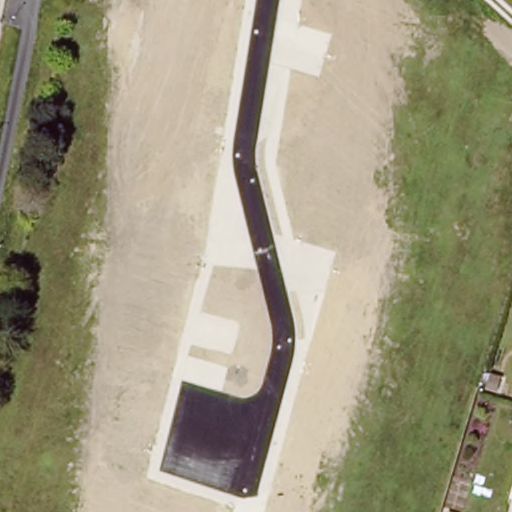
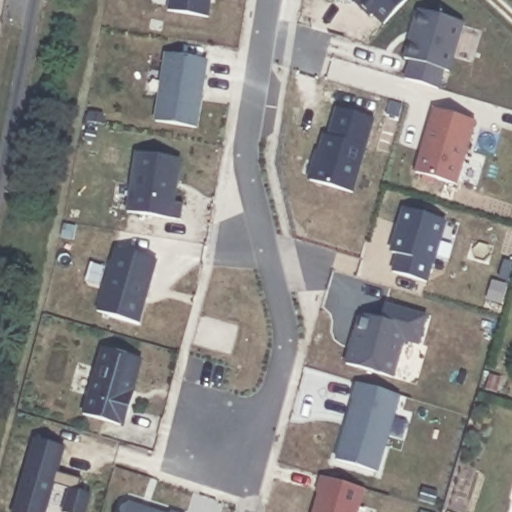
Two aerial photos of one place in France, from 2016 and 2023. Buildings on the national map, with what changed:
new [(168,9),(170,0),(210,0),(207,15),(168,9)]
new [(370,14),(368,16),(352,0),(406,0),(382,24),(370,14)]
new [(450,72),(442,69),(437,88),(402,78),(408,58),(403,57),(418,9),(462,23),(450,72)]
new [(168,49),(208,55),(197,123),(157,116),(168,49)]
new [(353,191),(307,179),(315,149),(319,151),(323,133),(328,134),(337,108),(375,119),(353,191)]
new [(457,183),(415,172),(432,108),(475,121),(457,183)]
new [(139,148),(182,154),(175,198),(185,199),(182,216),(129,208),(139,148)]
new [(435,264),(430,262),(427,280),(391,270),(395,253),(390,252),(403,207),(447,221),(435,264)]
new [(117,244),(158,255),(140,319),(99,307),(117,244)]
new [(362,314),(367,311),(383,315),(388,299),(428,310),(420,339),(405,335),(394,374),(348,360),(353,344),(357,333),(362,314)]
new [(133,390),(135,391),(125,428),(82,413),(100,348),(142,359),(133,390)]
new [(355,396),(353,395),(358,379),(401,391),(378,468),(337,456),(355,396)]
new [(86,512),(63,512),(70,488),(55,484),(46,512),(15,512),(35,439),(65,447),(57,473),(81,479),(77,491),(90,495),(86,512)]
new [(320,489),(318,488),(322,472),(366,485),(358,512),(313,512),(320,489)]
new [(122,505),(127,502),(162,512),(120,512),(122,505)]

